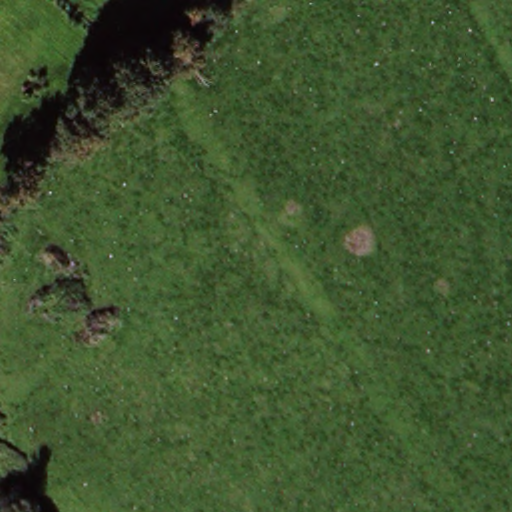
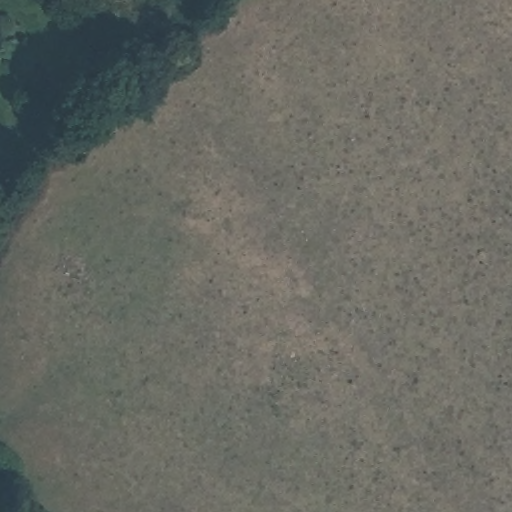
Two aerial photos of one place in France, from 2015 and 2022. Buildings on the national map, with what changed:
[]

